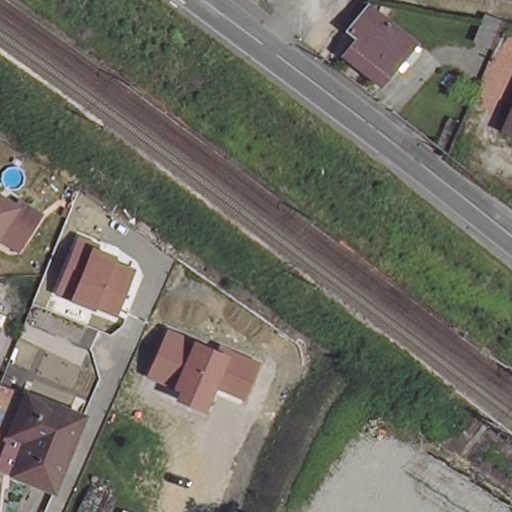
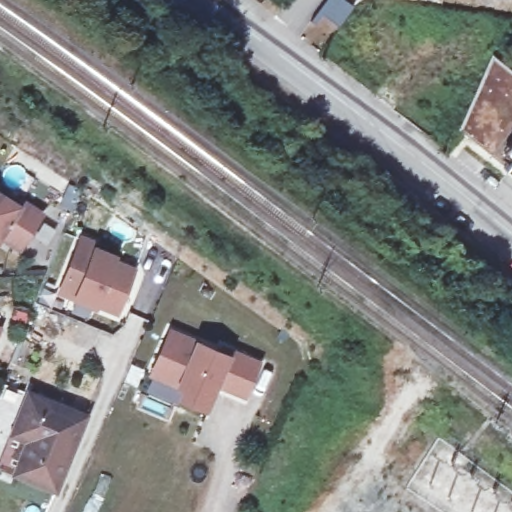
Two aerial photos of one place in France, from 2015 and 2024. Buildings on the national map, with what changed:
new [(336,29),(324,18),(315,29),(307,21),(324,0),(338,0),(352,11),(336,29)]
demolished [(385,84),(343,54),(356,37),(350,32),(348,30),(367,9),(393,29),(414,45),(385,84)]
new [(512,70),(512,173),(502,165),(460,129),(492,54),(512,70)]
demolished [(505,135),(512,117),(512,138),(505,135)]
unchanged [(20,201),(41,214),(28,235),(22,230),(13,245),(0,236),(0,194),(17,205),(20,201)]
unchanged [(78,236),(101,245),(100,249),(118,257),(116,263),(135,270),(117,315),(55,293),(78,236)]
unchanged [(168,328),(216,350),(218,345),(261,363),(246,401),(219,388),(208,412),(175,400),(179,392),(146,377),(168,328)]
unchanged [(13,432),(30,391),(85,413),(80,426),(85,428),(82,432),(78,431),(55,486),(15,470),(0,464),(13,432)]
demolished [(361,461),(345,450),(341,447),(359,422),(377,435),(361,461)]

